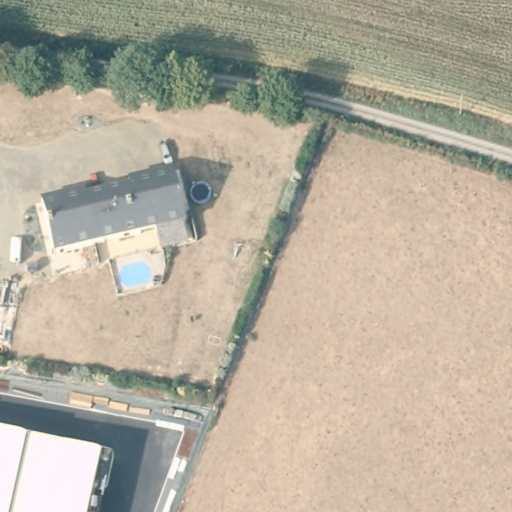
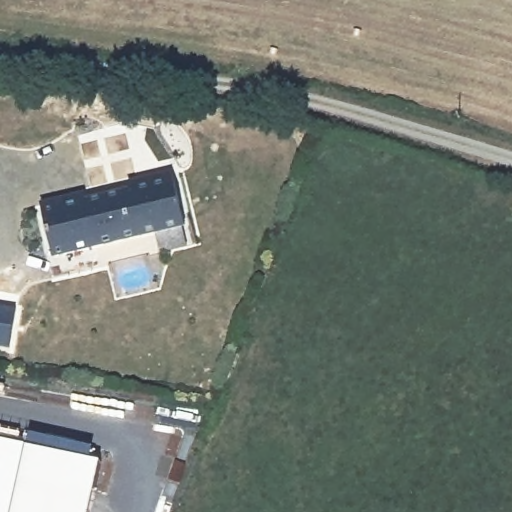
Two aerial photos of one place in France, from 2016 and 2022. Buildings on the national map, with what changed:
unchanged [(51,261),(37,205),(84,194),(86,201),(127,190),(126,183),(173,174),(185,227),(51,261)]
new [(10,348),(0,346),(0,306),(17,309),(10,348)]
unchanged [(0,443),(102,465),(92,512),(0,512),(0,443)]

